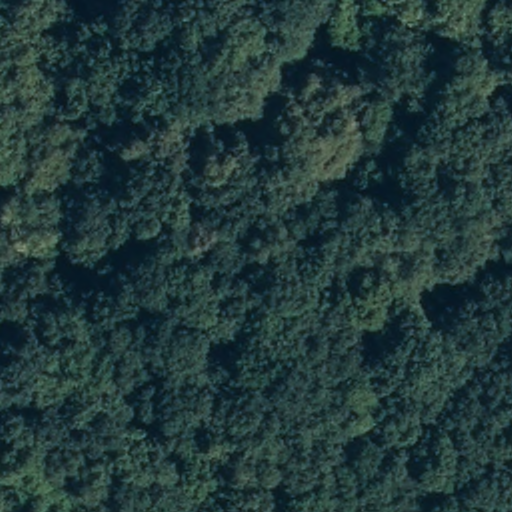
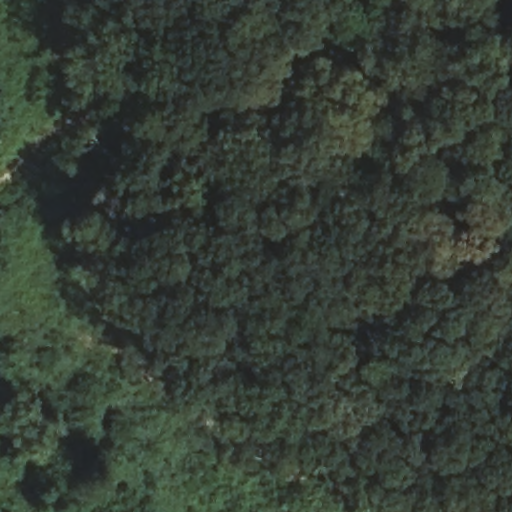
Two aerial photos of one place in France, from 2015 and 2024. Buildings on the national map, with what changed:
[]

